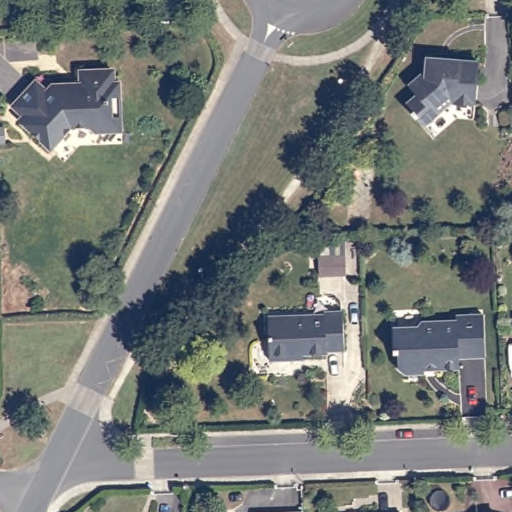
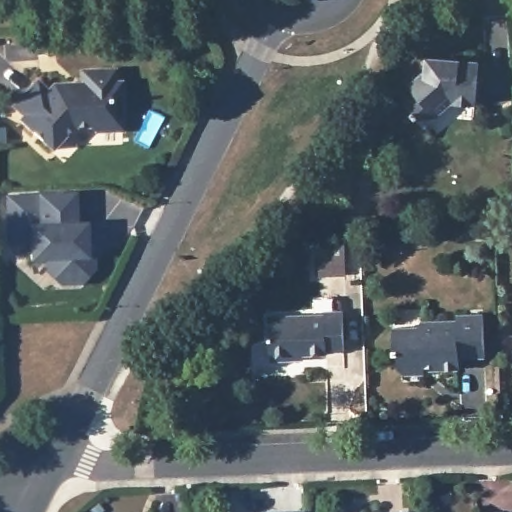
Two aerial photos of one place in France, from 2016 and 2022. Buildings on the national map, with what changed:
unchanged [(485,100),(461,99),(432,122),(415,101),(426,91),(417,82),(434,67),(435,54),(448,55),(459,55),(487,58),(485,100)]
unchanged [(115,70),(115,85),(122,85),(124,132),(99,134),(92,127),(77,128),(57,150),(25,120),(30,114),(17,102),(38,80),(51,92),(57,86),(71,85),(85,85),(85,71),(115,70)]
new [(30,260),(30,244),(8,245),(7,196),(83,194),(84,225),(106,225),(106,236),(101,236),(102,270),(86,276),(67,276),(46,271),(46,260),(30,260)]
unchanged [(323,314),(323,311),(342,310),(343,350),(326,351),(326,353),(292,355),(292,360),(268,361),(267,315),(323,314)]
unchanged [(411,326),(417,319),(452,320),(452,315),(479,314),(480,357),(456,357),(456,368),(438,368),(436,365),(420,365),(420,372),(401,373),(394,368),(393,352),(388,352),(388,326),(411,326)]

